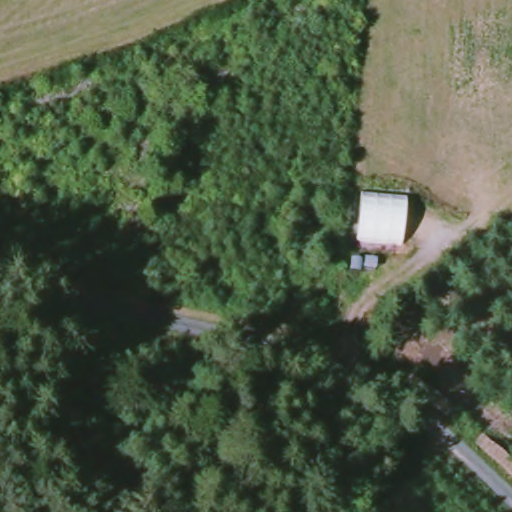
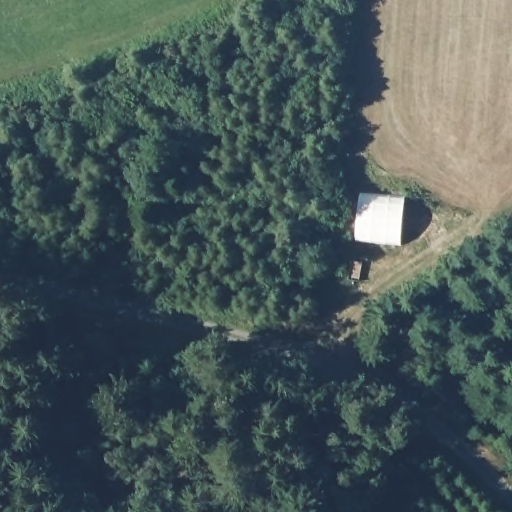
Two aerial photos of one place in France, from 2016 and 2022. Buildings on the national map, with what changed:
unchanged [(360,195),(405,199),(401,243),(355,238),(360,195)]

